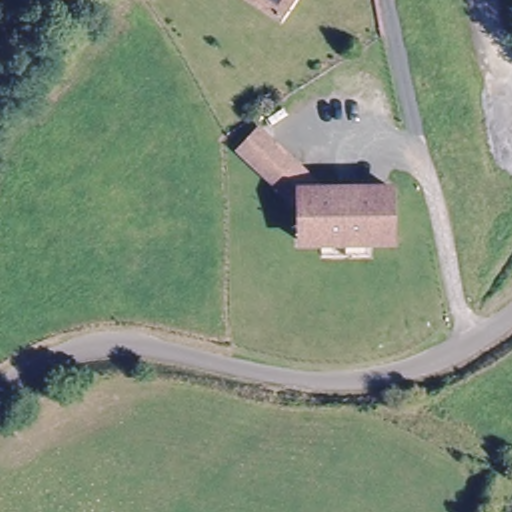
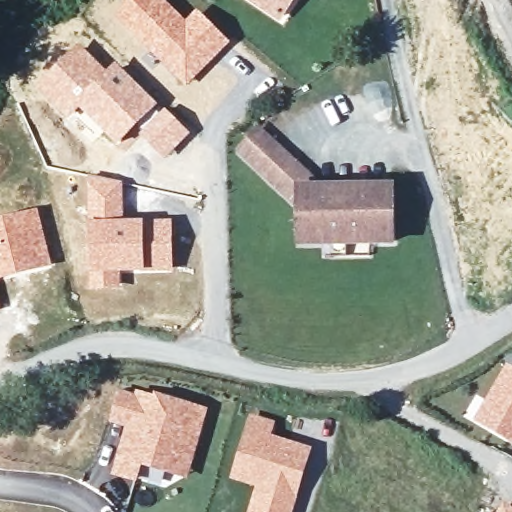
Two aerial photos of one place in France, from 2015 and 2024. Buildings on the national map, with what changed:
new [(167,0),(186,19),(198,9),(231,42),(186,87),(114,15),(129,0),(167,0)]
unchanged [(241,0),(289,0),(274,22),(241,0)]
new [(80,43),(107,69),(115,61),(159,104),(145,120),(148,123),(140,131),(137,128),(119,145),(79,110),(68,120),(36,87),(80,43)]
new [(148,123),(165,107),(191,133),(165,159),(140,131),(148,123)]
unchanged [(296,243),(295,209),(295,197),(283,197),(278,193),(234,151),(254,129),(317,189),(339,189),(384,188),(385,242),(365,242),(340,242),(317,243),(296,243)]
new [(88,175),(124,181),(125,219),(173,219),(174,272),(122,273),(122,288),(90,289),(87,213),(88,175)]
new [(53,266),(0,281),(0,219),(39,208),(53,266)]
new [(0,310),(0,305),(1,310),(0,310)]
new [(477,419),(506,365),(512,368),(512,442),(477,419)]
new [(119,387),(134,392),(135,388),(153,394),(154,391),(209,408),(189,478),(143,466),(138,482),(111,474),(124,427),(108,421),(119,387)]
new [(251,413),(277,421),(273,434),(313,447),(293,512),(246,512),(254,487),(229,479),(251,413)]
new [(504,504),(512,507),(512,512),(500,512),(504,504)]

